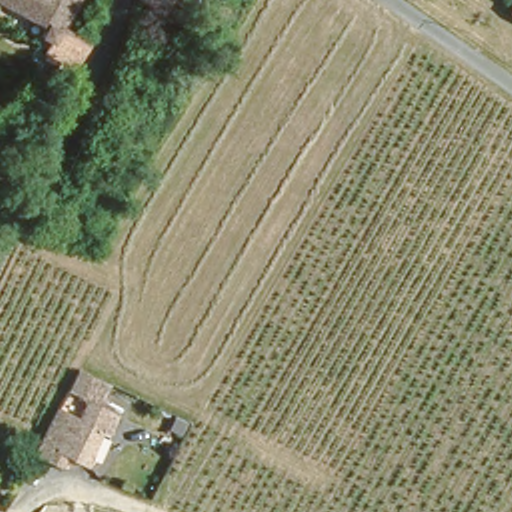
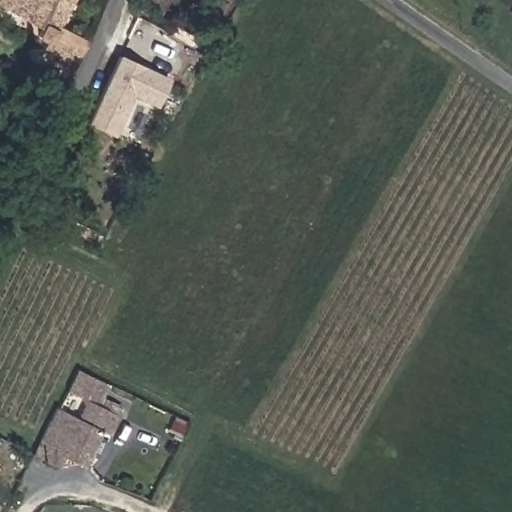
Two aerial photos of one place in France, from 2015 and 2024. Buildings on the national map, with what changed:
unchanged [(58,28),(85,44),(64,85),(53,79),(55,76),(33,63),(50,30),(1,0),(72,0),(58,28)]
unchanged [(152,7),(140,1),(141,0),(156,0),(152,7)]
unchanged [(509,0),(512,0),(512,11),(505,6),(509,0)]
new [(118,54),(171,79),(157,109),(133,97),(114,138),(85,124),(118,54)]
unchanged [(67,451),(62,463),(39,453),(58,406),(79,416),(87,398),(99,404),(102,397),(121,406),(118,413),(110,432),(101,427),(87,459),(67,451)]

